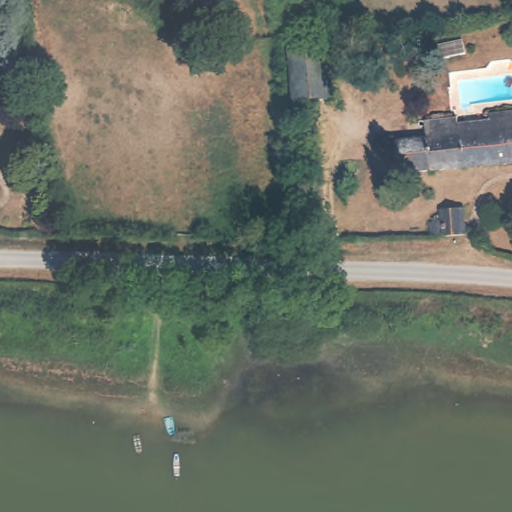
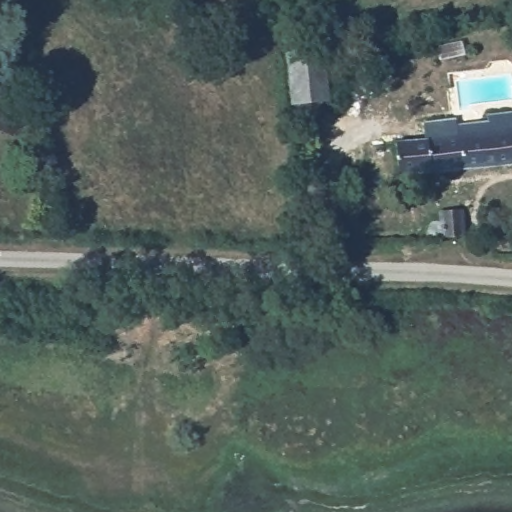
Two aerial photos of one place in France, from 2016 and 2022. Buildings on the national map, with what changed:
unchanged [(324,44),(330,100),(294,104),(288,49),(324,44)]
unchanged [(489,118),(512,117),(512,164),(397,173),(396,159),(379,159),(379,142),(428,140),(428,124),(460,122),(461,136),(489,135),(489,118)]
unchanged [(466,203),(464,243),(444,242),(444,240),(437,237),(434,236),(432,232),(431,228),(433,224),(436,221),(440,220),(440,212),(447,212),(447,202),(466,203)]

